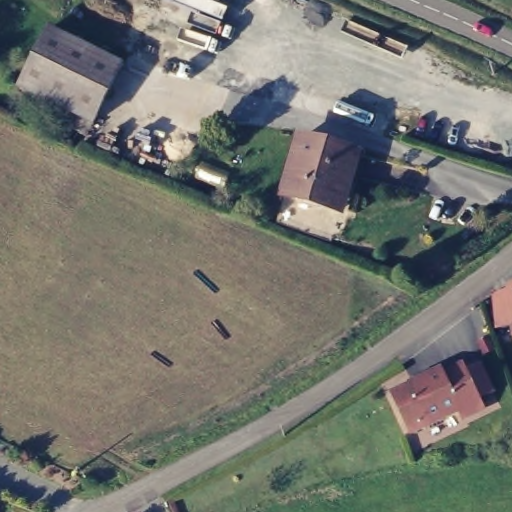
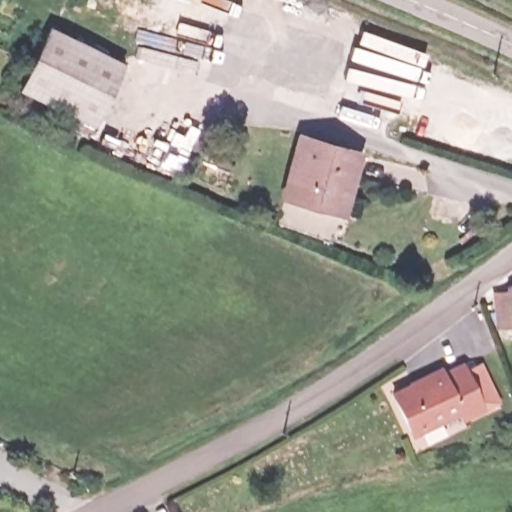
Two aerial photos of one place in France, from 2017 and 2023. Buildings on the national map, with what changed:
unchanged [(124,59),(89,131),(49,111),(55,100),(20,83),(50,23),(124,59)]
unchanged [(312,133),(367,149),(350,207),(295,191),(312,133)]
unchanged [(489,289),(504,288),(504,281),(512,278),(512,330),(508,330),(507,320),(492,321),(489,289)]
unchanged [(444,369),(462,360),(483,404),(464,413),(460,406),(412,429),(394,388),(442,365),(444,369)]

